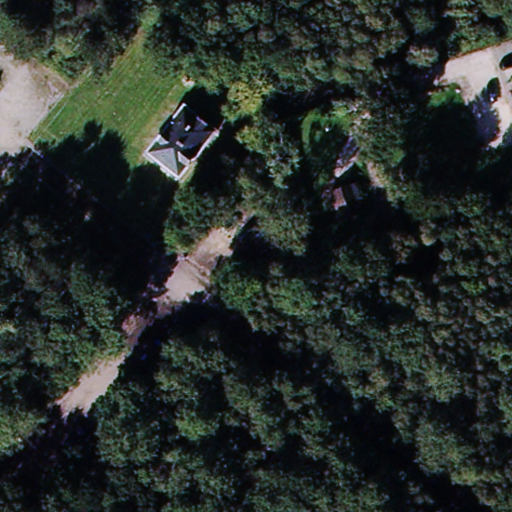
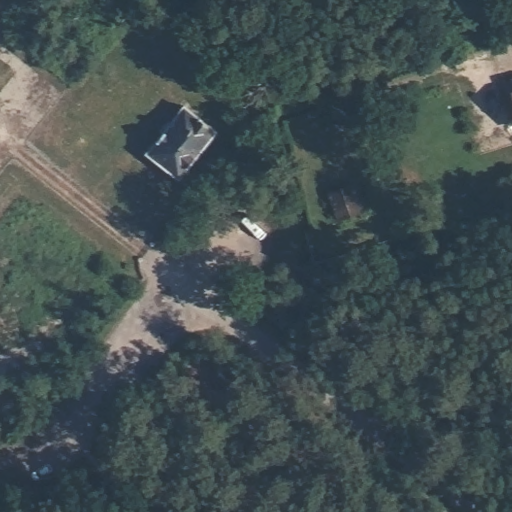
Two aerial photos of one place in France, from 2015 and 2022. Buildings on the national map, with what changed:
unchanged [(507,92),(512,90),(512,111),(507,92)]
unchanged [(148,152),(183,111),(213,136),(178,179),(148,152)]

